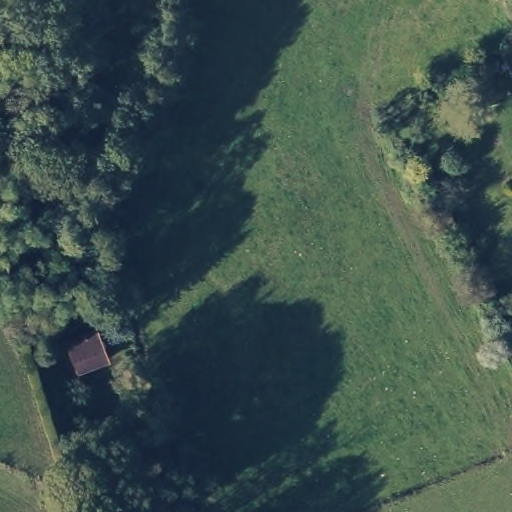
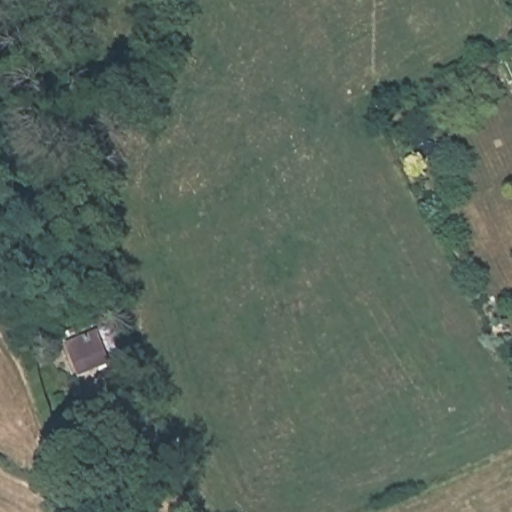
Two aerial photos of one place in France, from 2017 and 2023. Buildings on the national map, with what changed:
unchanged [(103,360),(76,373),(64,346),(91,332),(103,360)]

